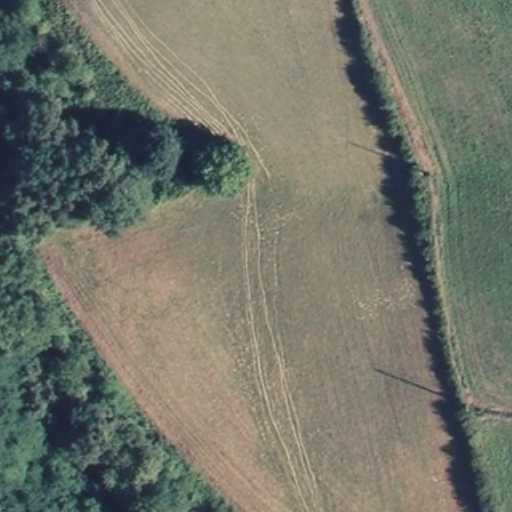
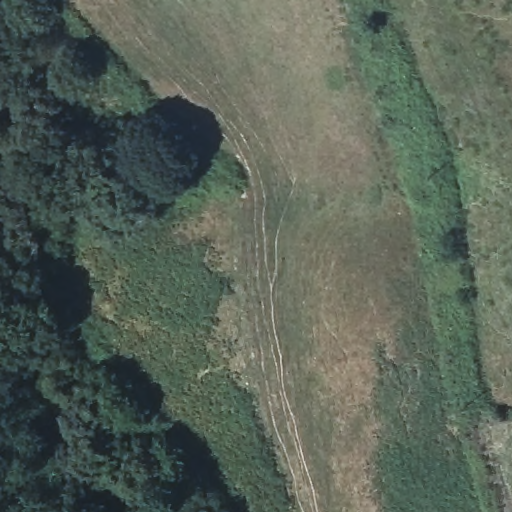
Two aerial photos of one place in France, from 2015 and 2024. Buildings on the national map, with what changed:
[]

